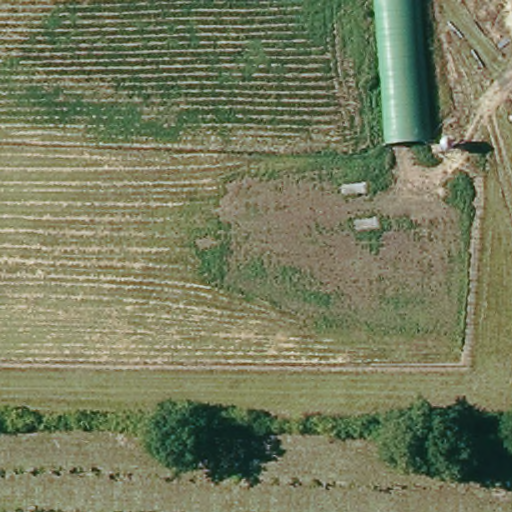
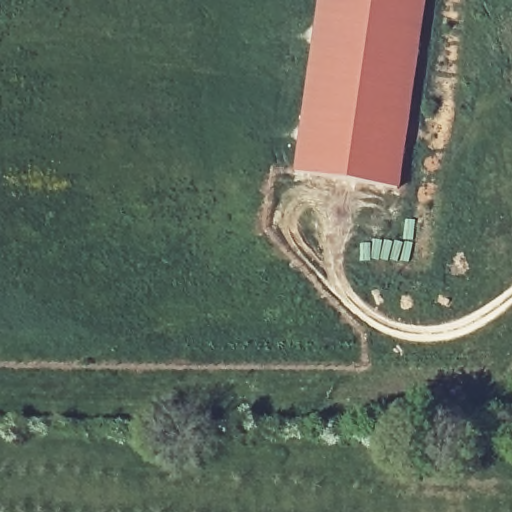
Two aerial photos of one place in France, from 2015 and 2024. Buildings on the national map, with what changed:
new [(317,0),(424,0),(398,187),(293,171),(317,0)]
demolished [(389,147),(377,0),(422,0),(433,142),(389,147)]

